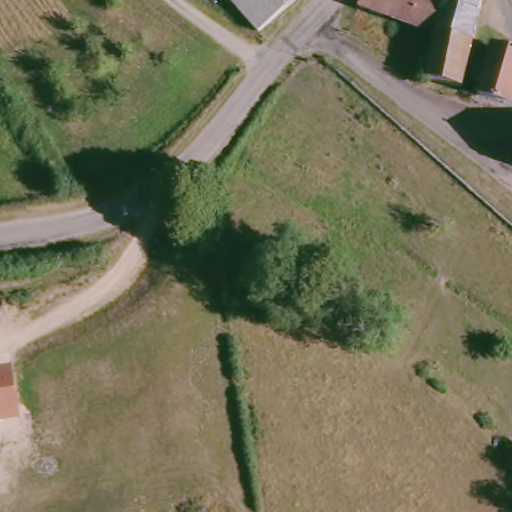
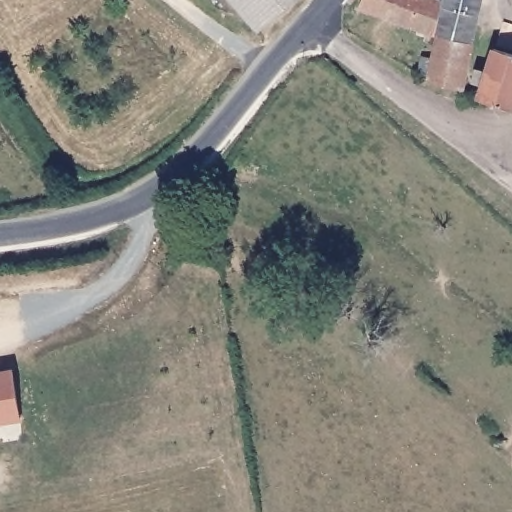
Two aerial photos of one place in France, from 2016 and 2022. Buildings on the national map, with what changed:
unchanged [(260,36),(231,0),(303,0),(260,36)]
unchanged [(442,40),(365,12),(370,0),(432,0),(449,6),(450,0),(487,0),(479,43),(442,40)]
unchanged [(428,61),(437,62),(442,40),(479,43),(470,91),(465,90),(432,85),(433,78),(425,76),(428,61)]
unchanged [(512,112),(482,102),(487,87),(480,86),(485,73),(491,76),(500,52),(512,56),(512,112)]
unchanged [(0,422),(0,368),(11,367),(18,419),(0,422)]

